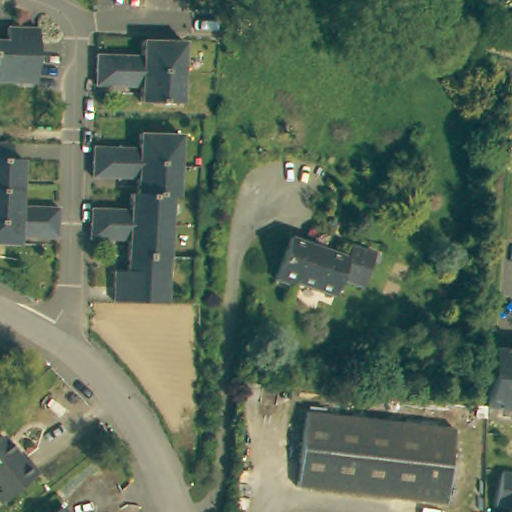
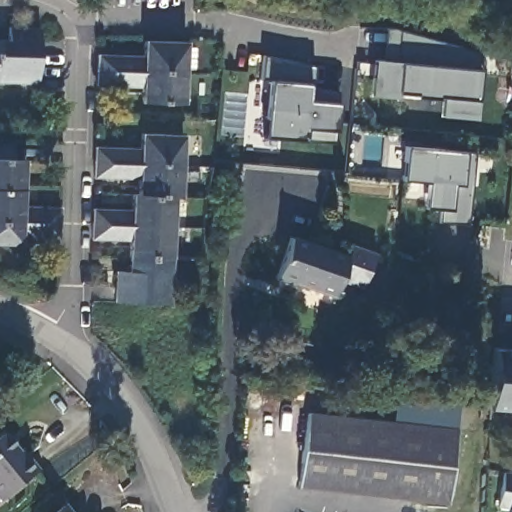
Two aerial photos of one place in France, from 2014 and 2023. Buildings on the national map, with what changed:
unchanged [(8,38),(8,25),(39,25),(38,81),(0,80),(0,38),(8,38)]
new [(372,60),(383,61),(387,29),(395,29),(480,53),(479,70),(476,120),(439,117),(441,99),(370,96),(372,60)]
unchanged [(97,56),(142,57),(143,42),(185,42),(184,73),(97,71),(97,56)]
new [(313,67),(312,87),(338,93),(337,104),(336,131),(335,144),(305,141),(263,137),(270,82),(262,79),(265,57),(313,67)]
unchanged [(184,104),(142,102),(142,87),(97,87),(97,71),(184,73),(184,104)]
unchanged [(141,150),(141,135),(183,135),(182,166),(96,164),(96,149),(141,150)]
unchanged [(0,192),(0,146),(15,146),(15,162),(26,162),(26,192),(0,192)]
new [(467,225),(439,223),(442,210),(425,208),(427,183),(402,180),(405,146),(463,152),(475,153),(467,225)]
unchanged [(172,196),(133,196),(140,195),(140,180),(95,179),(96,164),(182,166),(182,197),(172,196)]
unchanged [(0,223),(0,192),(26,192),(26,209),(62,209),(62,225),(0,223)]
unchanged [(182,197),(175,197),(175,227),(94,226),(95,211),(132,211),(133,196),(172,196),(182,197)]
unchanged [(62,240),(25,239),(25,247),(0,246),(0,223),(62,225),(62,240)]
unchanged [(175,227),(174,258),(159,257),(132,257),(132,242),(94,241),(94,226),(175,227)]
unchanged [(346,256),(350,245),(382,256),(379,263),(372,260),(362,287),(340,280),(334,295),(296,282),(295,286),(275,280),(290,237),(346,256)]
unchanged [(159,257),(174,258),(172,304),(167,303),(117,302),(118,272),(132,273),(132,257),(159,257)]
unchanged [(491,381),(493,348),(512,350),(512,410),(489,407),(491,381)]
unchanged [(457,429),(448,504),(297,487),(306,412),(457,429)]
unchanged [(2,437),(22,461),(24,459),(36,473),(0,503),(0,438),(2,437)]
unchanged [(508,467),(512,468),(512,504),(502,502),(508,467)]
unchanged [(62,507),(66,512),(57,512),(62,507)]

